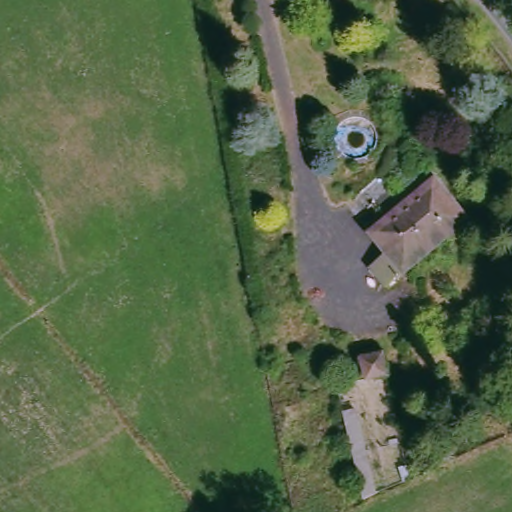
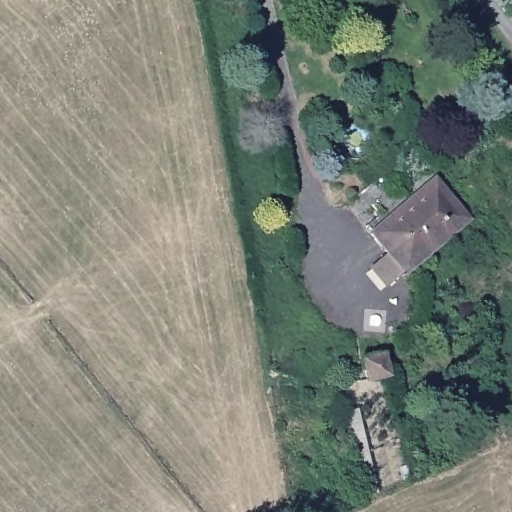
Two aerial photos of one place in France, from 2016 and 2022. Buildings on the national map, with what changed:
unchanged [(464,214),(397,272),(385,282),(369,263),(385,249),(370,230),(432,177),(464,214)]
unchanged [(379,380),(360,385),(356,366),(375,361),(379,380)]
unchanged [(345,412),(360,409),(382,496),(369,499),(345,412)]

